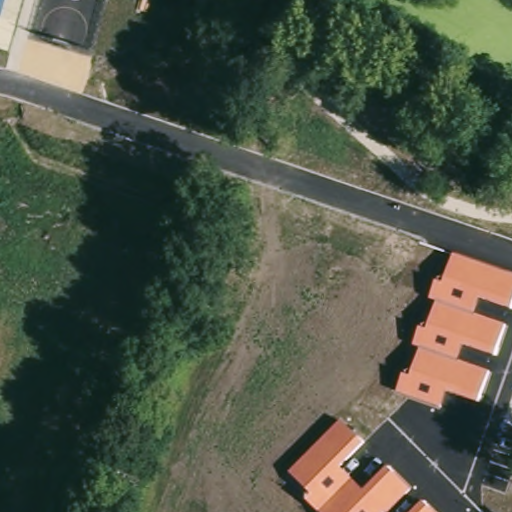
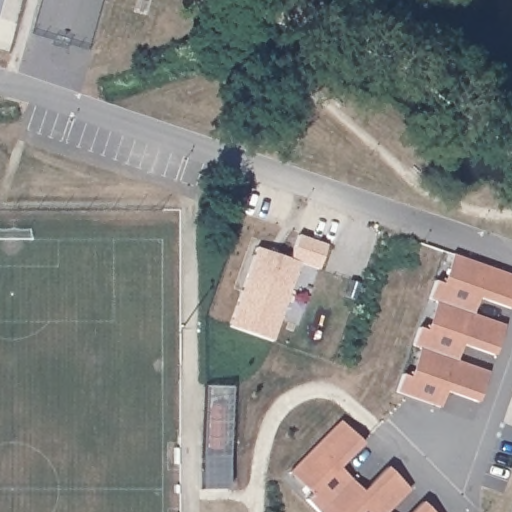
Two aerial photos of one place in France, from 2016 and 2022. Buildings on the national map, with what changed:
new [(256,247),(290,258),(298,235),(326,245),(318,268),(299,262),(272,341),(229,326),(256,247)]
unchanged [(446,392),(440,407),(397,392),(403,374),(410,376),(420,348),(412,346),(419,326),(426,328),(436,302),(429,299),(437,278),(444,282),(453,253),(512,274),(512,303),(510,307),(479,297),(473,315),(505,326),(494,356),(462,343),(456,361),(489,372),(478,401),(446,392)]
new [(206,385),(231,386),(229,488),(204,488),(206,385)]
unchanged [(306,498),(311,493),(288,472),(339,422),(362,445),(341,467),(363,490),(388,466),(410,490),(388,512),(319,512),(306,498)]
unchanged [(423,501),(433,512),(411,512),(423,501)]

